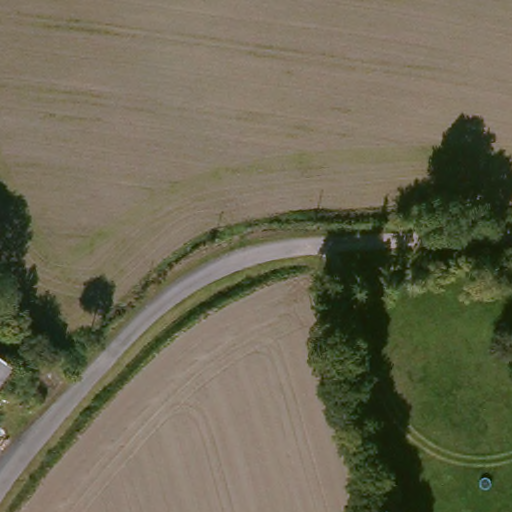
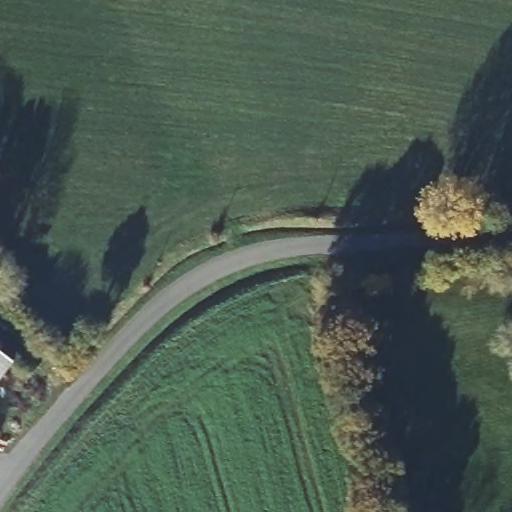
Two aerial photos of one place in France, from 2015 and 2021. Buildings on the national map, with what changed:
unchanged [(12,363),(0,380),(0,355),(12,363)]

